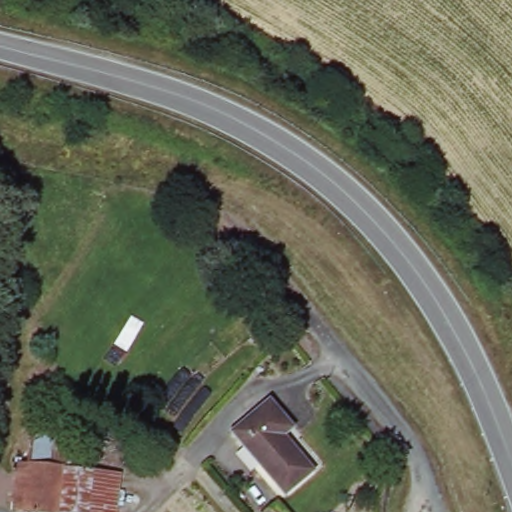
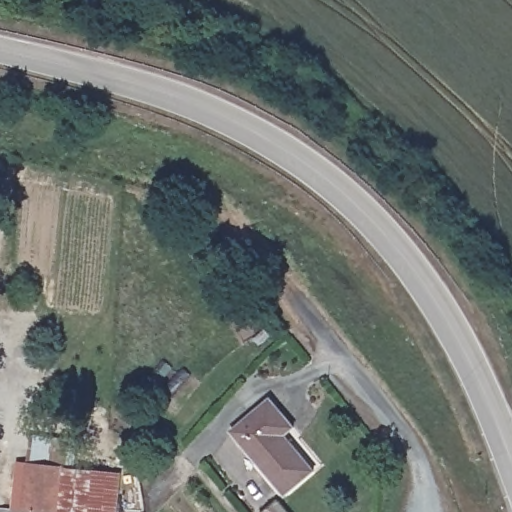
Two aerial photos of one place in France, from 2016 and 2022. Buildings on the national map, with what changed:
unchanged [(319,471),(290,494),(238,428),(276,398),(299,428),(291,434),(319,471)]
unchanged [(89,512),(52,512),(16,509),(21,460),(94,467),(89,512)]
unchanged [(121,471),(117,512),(89,512),(94,467),(121,471)]
unchanged [(295,512),(271,512),(285,499),(295,512)]

